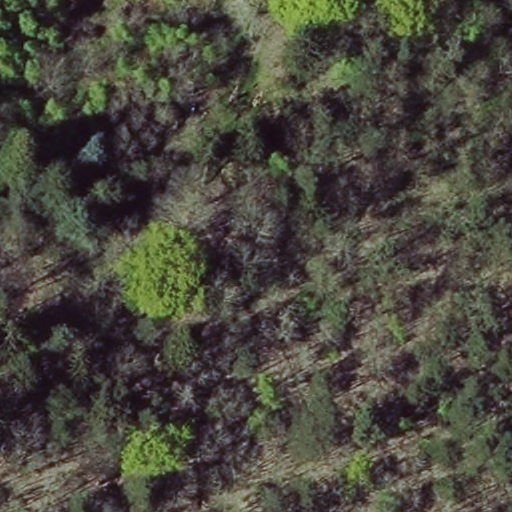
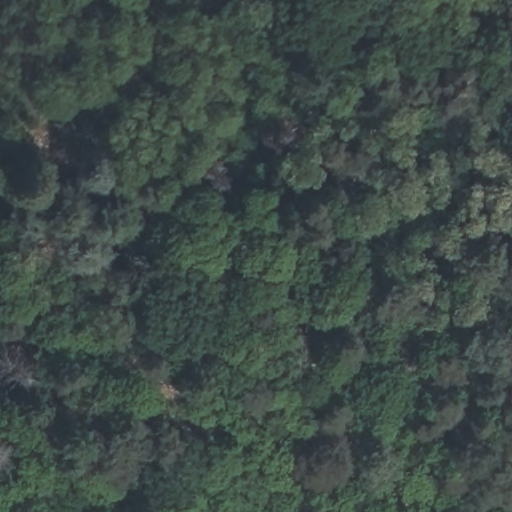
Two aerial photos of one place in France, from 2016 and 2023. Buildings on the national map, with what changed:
unchanged [(218,89),(197,139),(166,128),(185,75),(218,89)]

